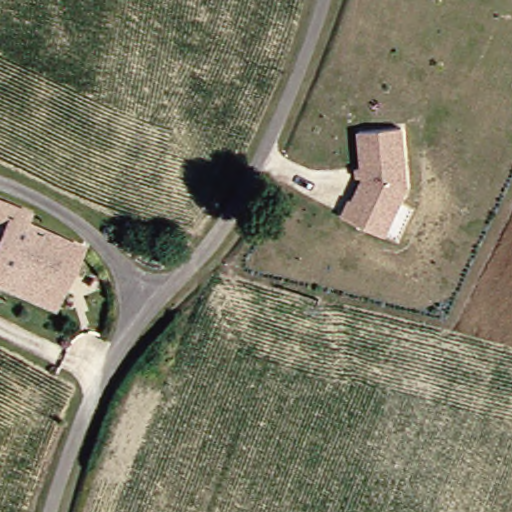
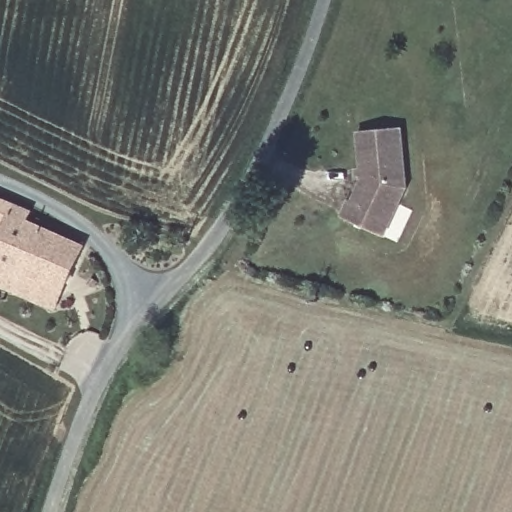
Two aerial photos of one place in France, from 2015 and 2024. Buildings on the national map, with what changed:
unchanged [(371,229),(340,214),(347,198),(352,201),(361,179),(358,129),(401,129),(405,188),(388,223),(382,235),(371,229)]
unchanged [(86,253),(67,297),(0,267),(0,249),(9,229),(0,224),(0,201),(22,213),(19,222),(86,253)]
unchanged [(0,287),(0,267),(67,297),(60,317),(0,287)]

